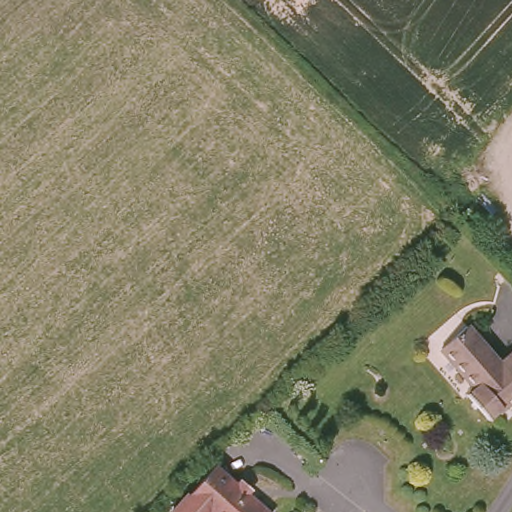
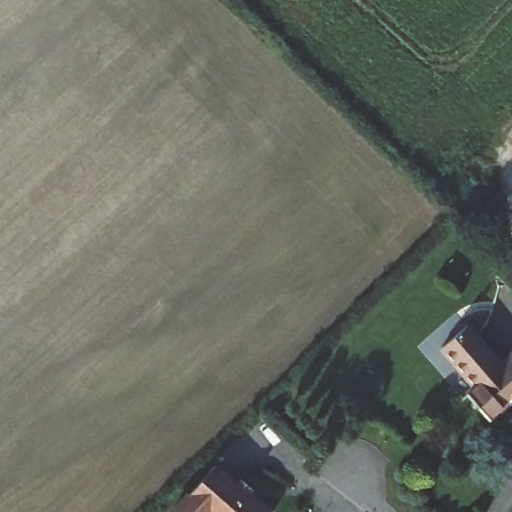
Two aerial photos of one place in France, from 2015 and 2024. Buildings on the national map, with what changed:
unchanged [(505,365),(512,357),(512,400),(497,418),(475,397),(482,388),(447,355),(467,332),(505,365)]
unchanged [(209,466),(231,486),(238,480),(250,492),(243,497),(259,512),(166,512),(209,466)]

